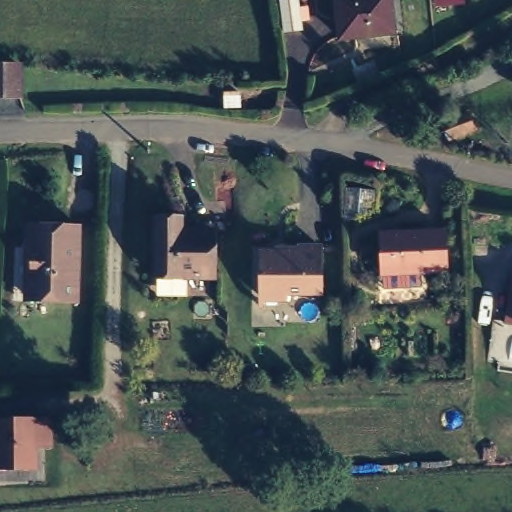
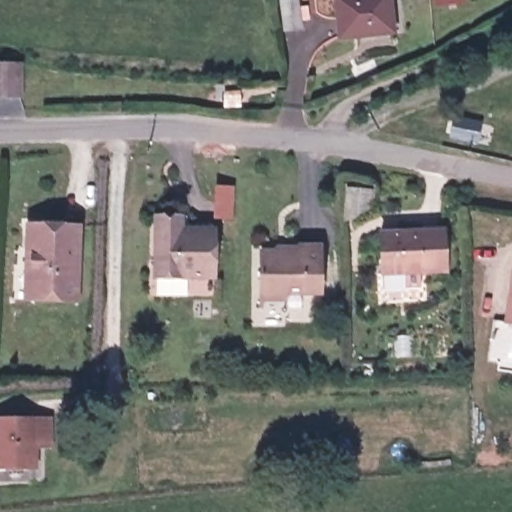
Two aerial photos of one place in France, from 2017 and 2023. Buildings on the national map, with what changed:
unchanged [(282,0),(297,0),(298,4),(307,4),(308,15),(299,16),(300,26),(285,28),(282,0)]
unchanged [(389,0),(393,31),(343,36),(339,0),(389,0)]
unchanged [(6,63),(7,91),(0,91),(0,63),(6,63)]
unchanged [(241,86),(242,106),(222,107),(222,89),(241,86)]
unchanged [(467,113),(476,132),(448,141),(439,122),(467,113)]
unchanged [(396,187),(390,206),(364,210),(374,180),(396,187)]
unchanged [(217,227),(218,273),(158,272),(158,221),(158,214),(183,215),(183,222),(183,226),(217,227)]
unchanged [(80,220),(80,293),(34,293),(34,242),(30,241),(31,219),(80,220)]
unchanged [(383,276),(383,264),(383,227),(446,227),(445,265),(422,265),(422,276),(383,276)]
unchanged [(260,299),(260,294),(262,250),(289,251),(290,244),(301,244),(324,245),(322,290),(285,288),(285,294),(284,298),(260,299)]
unchanged [(49,416),(49,448),(38,449),(38,469),(0,470),(0,417),(49,416)]

